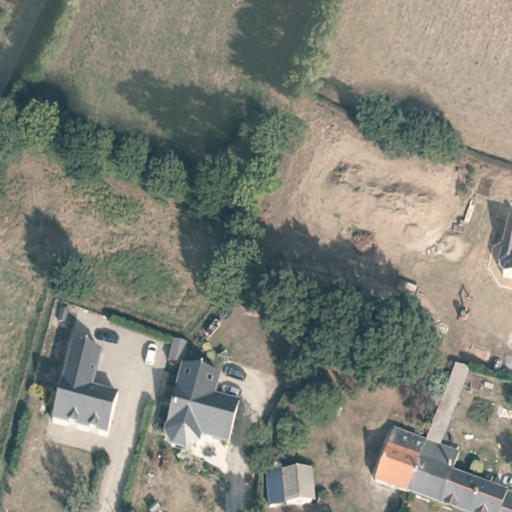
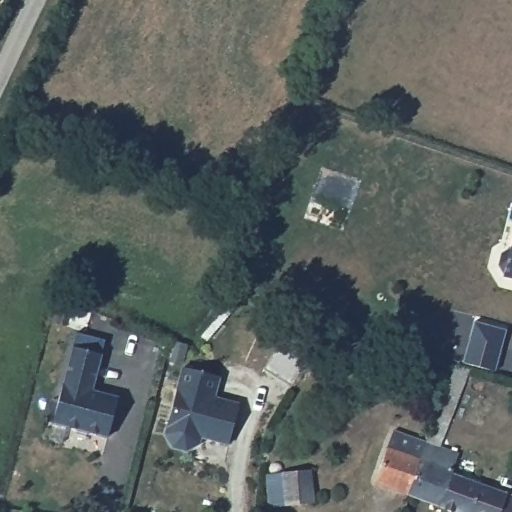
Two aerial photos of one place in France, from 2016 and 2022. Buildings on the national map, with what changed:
unchanged [(512,234),(512,280),(502,277),(512,234)]
new [(496,372),(463,362),(474,321),(508,329),(496,372)]
unchanged [(94,392),(119,398),(109,438),(54,424),(75,349),(103,355),(94,392)]
unchanged [(474,370),(446,445),(465,452),(457,473),(512,492),(512,512),(466,512),(415,494),(433,443),(462,365),(474,370)]
unchanged [(203,436),(201,444),(189,451),(174,447),(167,435),(185,367),(221,377),(216,397),(241,404),(240,410),(231,444),(203,436)]
unchanged [(381,482),(399,431),(433,443),(415,494),(381,482)]
unchanged [(284,473),(311,471),(313,502),(272,505),(271,471),(274,462),(283,462),(284,473)]

